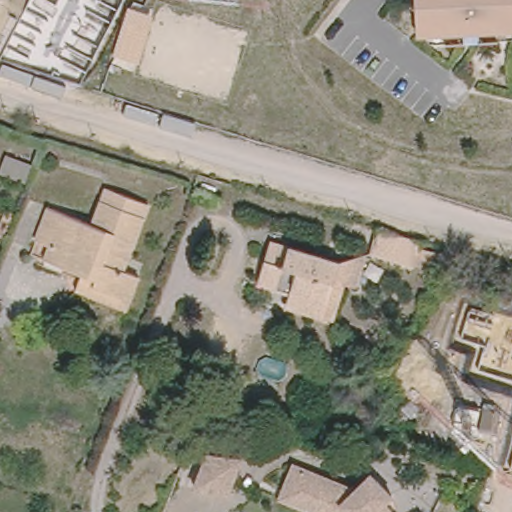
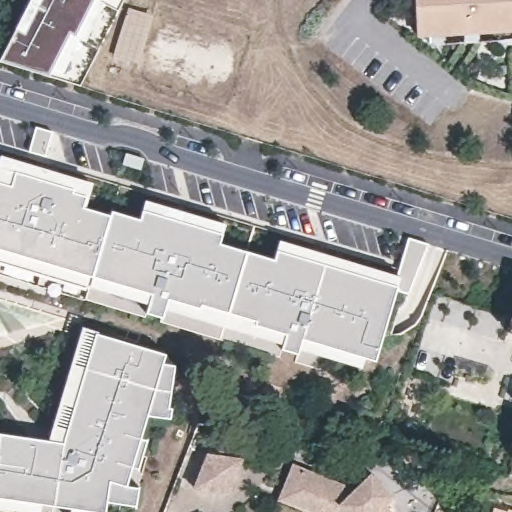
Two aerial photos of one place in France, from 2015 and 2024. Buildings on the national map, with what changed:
unchanged [(80,84),(0,61),(0,55),(30,0),(124,0),(80,84)]
unchanged [(512,31),(418,37),(417,0),(512,0),(512,31)]
unchanged [(112,57),(127,8),(152,16),(138,63),(112,57)]
new [(37,124),(53,129),(46,154),(30,149),(37,124)]
new [(126,151),(144,157),(141,167),(123,161),(126,151)]
new [(0,155),(92,183),(83,208),(112,217),(114,210),(141,219),(146,201),(224,224),(218,243),(275,260),(280,241),(396,276),(408,241),(427,245),(408,294),(396,292),(370,371),(300,350),(297,354),(165,308),(161,316),(146,312),(149,303),(0,260),(0,157),(0,155)]
demolished [(148,203),(123,269),(139,275),(130,297),(92,283),(95,276),(82,272),(43,258),(48,244),(35,239),(47,206),(91,222),(105,186),(148,203)]
demolished [(421,240),(420,246),(415,264),(370,252),(377,226),(421,240)]
demolished [(266,234),(335,256),(318,312),(280,300),(285,287),(252,277),(266,234)]
new [(512,315),(512,334),(506,332),(512,315)]
new [(63,444),(94,333),(167,354),(164,365),(175,365),(170,417),(148,414),(142,436),(148,438),(138,467),(132,464),(127,485),(140,485),(135,507),(108,501),(105,512),(0,496),(0,434),(63,444)]
unchanged [(235,456),(231,491),(193,486),(191,486),(196,450),(235,456)]
unchanged [(382,505),(388,512),(337,512),(332,508),(280,486),(290,463),(351,489),(371,475),(390,498),(382,505)]
unchanged [(280,486),(332,508),(337,512),(311,512),(276,497),(280,486)]
new [(512,512),(492,512),(495,506),(507,510),(508,506),(512,508),(512,512)]

